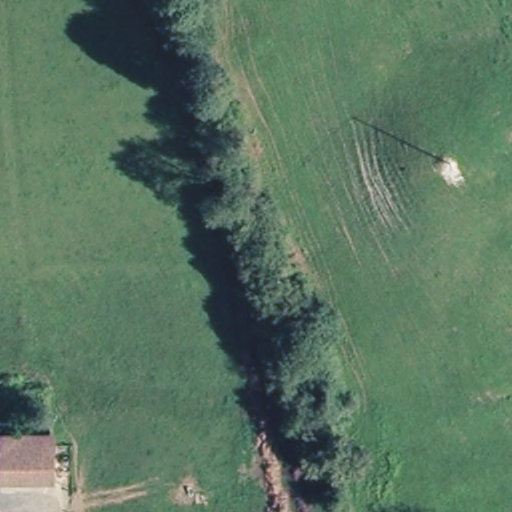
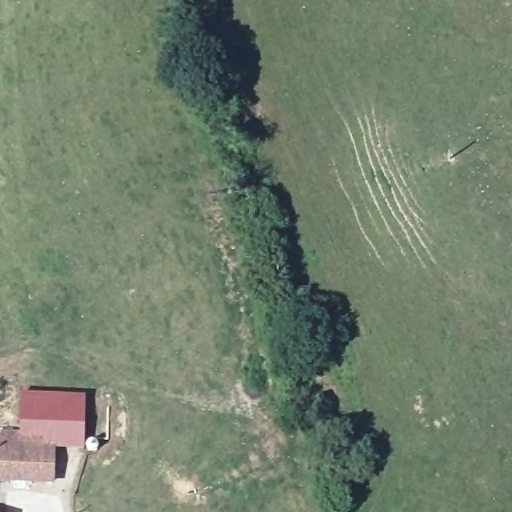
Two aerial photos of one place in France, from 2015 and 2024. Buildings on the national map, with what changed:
new [(86,397),(85,449),(48,448),(48,441),(19,439),(21,396),(86,397)]
unchanged [(46,485),(0,482),(0,456),(1,438),(48,441),(46,485)]

